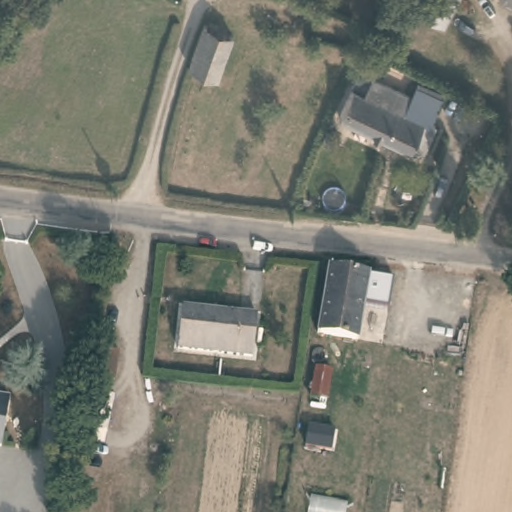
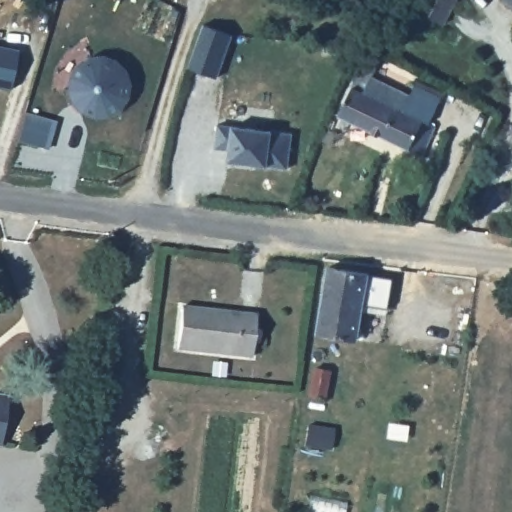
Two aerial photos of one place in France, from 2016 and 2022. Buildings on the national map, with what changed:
unchanged [(397,5),(400,0),(437,0),(422,22),(397,5)]
unchanged [(505,0),(512,0),(512,4),(505,0)]
unchanged [(205,24),(234,34),(218,75),(189,66),(204,24),(205,24)]
new [(0,88),(0,48),(18,51),(10,89),(0,88)]
new [(128,70),(133,83),(131,97),(123,109),(110,116),(96,117),(84,111),(73,102),(68,89),(69,74),(77,62),(90,56),(104,55),(119,60),(128,70)]
unchanged [(373,78),(412,96),(417,88),(442,100),(430,124),(438,128),(424,156),(341,116),(354,87),(357,89),(367,65),(377,69),(373,78)]
new [(288,169),(268,166),(228,161),(229,149),(214,148),(217,124),(233,126),(273,131),(292,133),(288,169)]
unchanged [(369,274),(359,339),(319,333),(331,267),(369,274)]
unchanged [(257,314),(254,356),(179,348),(184,305),(257,314)]
unchanged [(1,446),(0,445),(0,395),(10,397),(1,446)]

